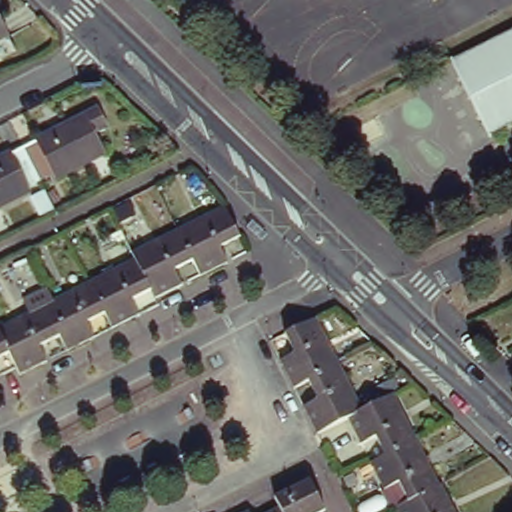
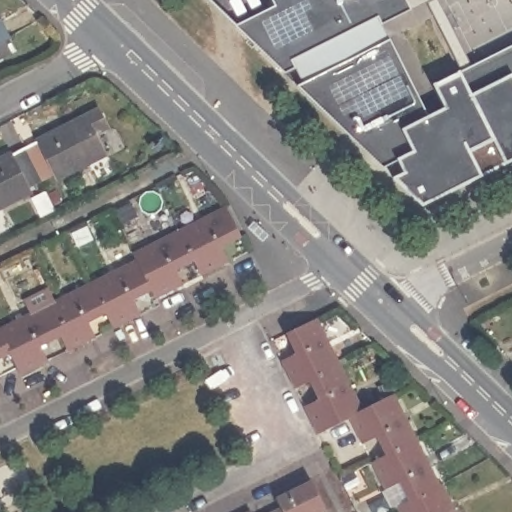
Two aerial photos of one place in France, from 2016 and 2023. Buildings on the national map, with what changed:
new [(512,49),(512,155),(415,202),(394,181),(405,175),(397,165),(380,171),(299,90),(389,44),(428,121),(446,110),(436,87),(462,72),(425,2),(382,27),(373,13),(368,17),(372,25),(291,65),(295,71),(285,77),(233,29),(276,9),(272,0),(438,0),(473,69),(512,49)]
unchanged [(8,38),(0,42),(0,22),(8,38)]
demolished [(476,112),(457,73),(452,64),(512,34),(512,123),(487,135),(476,112)]
unchanged [(37,132),(36,131),(53,122),(56,127),(65,122),(62,118),(95,101),(105,119),(92,126),(101,142),(89,149),(91,154),(56,171),(53,166),(40,173),(23,139),(37,132)]
unchanged [(26,181),(29,185),(0,200),(0,149),(8,145),(8,147),(23,139),(40,173),(26,181)]
unchanged [(40,215),(28,191),(45,182),(57,207),(40,215)]
unchanged [(220,240),(227,254),(201,267),(194,252),(178,222),(225,199),(240,229),(220,240)]
unchanged [(178,222),(194,252),(175,262),(182,277),(156,291),(152,282),(137,251),(133,245),(178,222)]
unchanged [(132,291),(140,306),(113,320),(105,305),(90,275),(137,251),(152,282),(132,291)]
unchanged [(88,314),(95,329),(82,336),(59,291),(90,275),(105,305),(88,314)]
unchanged [(59,291),(82,336),(67,343),(59,328),(40,338),(47,353),(20,367),(16,360),(9,345),(10,343),(0,325),(0,320),(59,291)]
unchanged [(294,350),(284,331),(316,314),(340,362),(308,377),(293,385),(279,357),(294,350)]
unchanged [(0,350),(0,325),(10,343),(9,345),(0,350)]
unchanged [(316,396),(308,377),(340,362),(363,406),(346,415),(316,430),(302,403),(316,396)]
unchanged [(374,434),(359,442),(346,415),(363,406),(393,391),(416,435),(383,452),(374,434)]
unchanged [(398,479),(382,487),(368,459),(383,452),(416,435),(440,480),(406,497),(398,479)]
unchanged [(316,512),(283,512),(279,503),(274,494),(309,477),(324,507),(316,512)]
unchanged [(458,512),(400,512),(395,503),(406,497),(440,480),(441,479),(458,512)]
unchanged [(279,503),(283,512),(263,512),(279,503)]
unchanged [(252,512),(240,512),(249,507),(252,512)]

